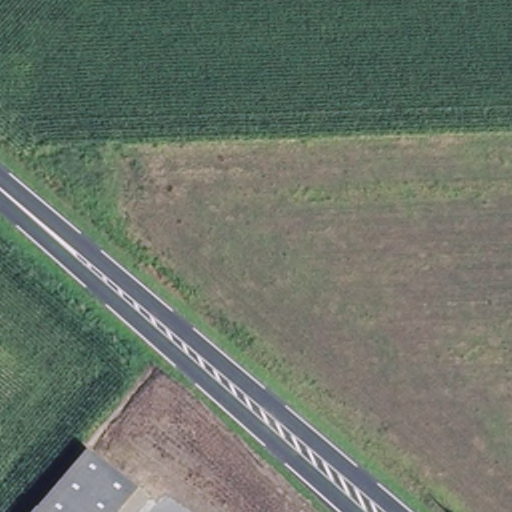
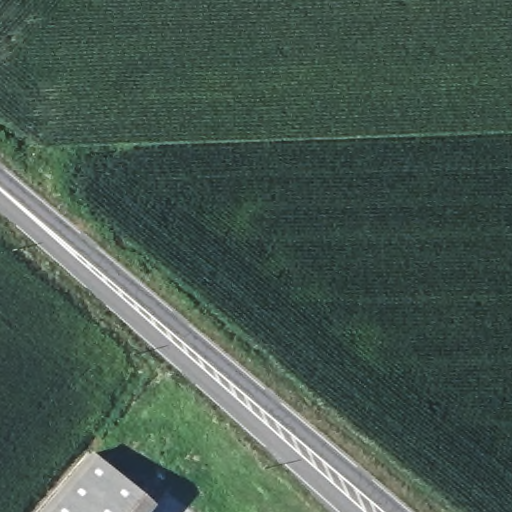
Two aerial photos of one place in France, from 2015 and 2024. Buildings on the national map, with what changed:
unchanged [(144,498),(131,512),(39,512),(93,450),(144,498)]

